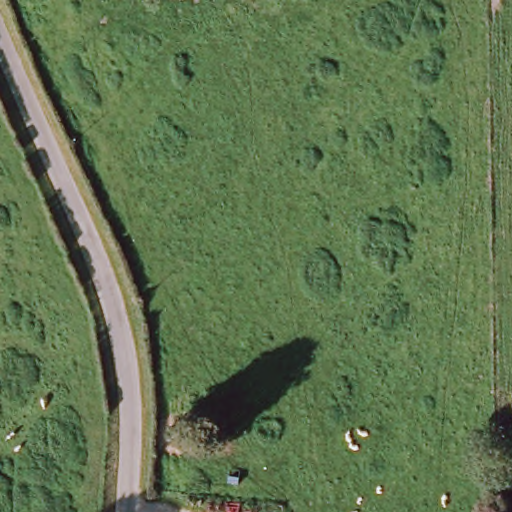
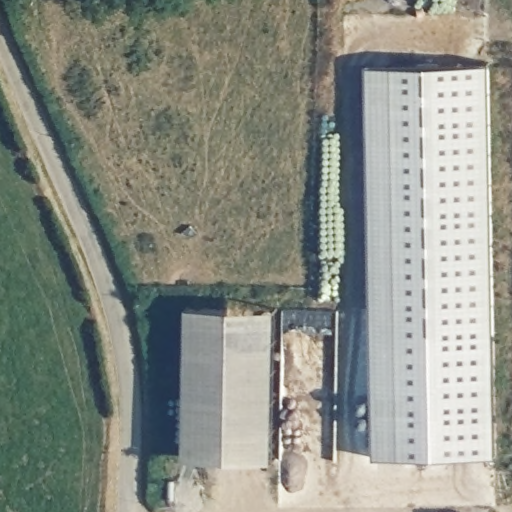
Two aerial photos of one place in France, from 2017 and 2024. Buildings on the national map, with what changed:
new [(370,65),(490,62),(499,453),(378,455),(370,65)]
new [(190,308),(280,309),(277,456),(187,454),(190,308)]

